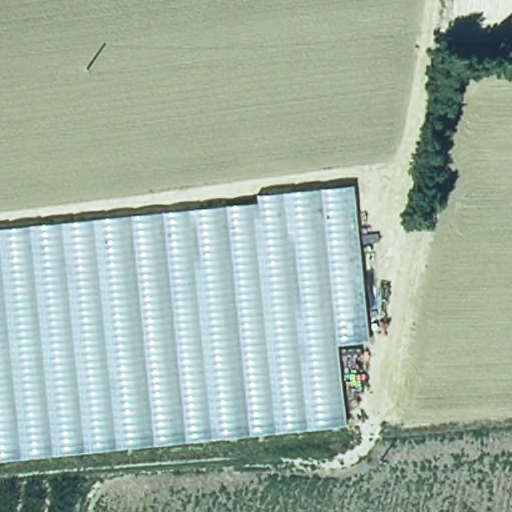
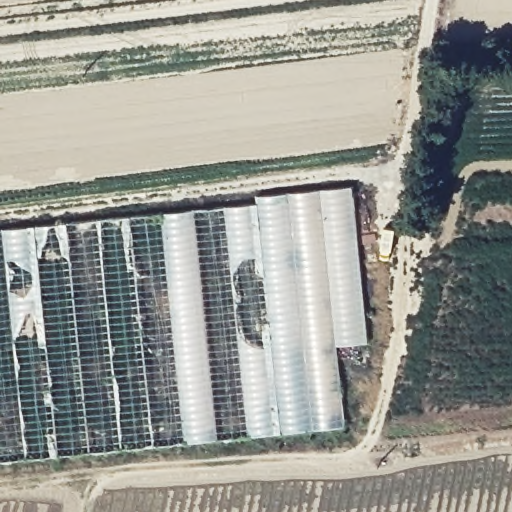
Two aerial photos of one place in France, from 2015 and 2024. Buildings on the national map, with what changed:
unchanged [(257,197),(352,187),(367,340),(335,345),(343,425),(0,459),(0,231),(259,205),(257,197)]

